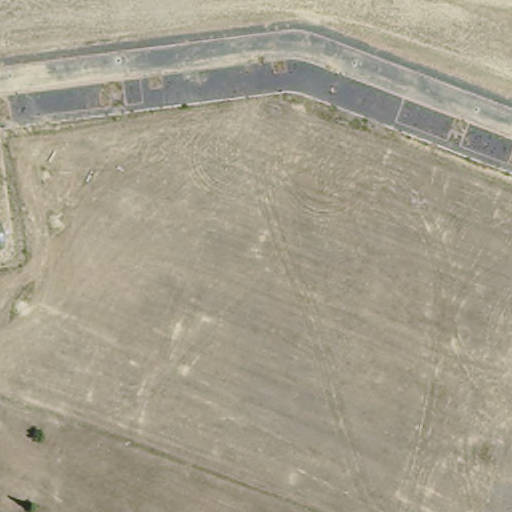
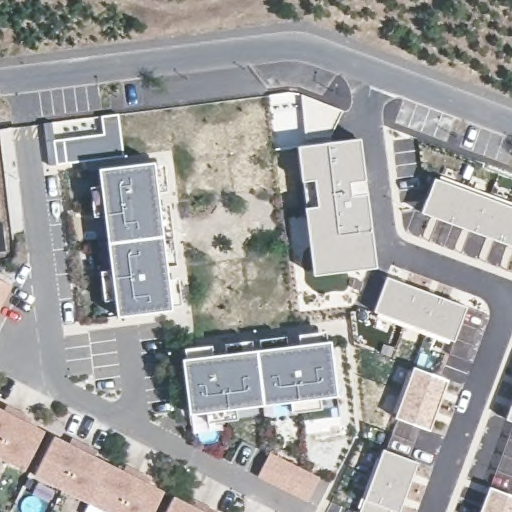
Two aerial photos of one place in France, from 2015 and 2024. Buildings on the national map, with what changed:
new [(343,110),(331,135),(305,136),(301,94),(343,110)]
new [(48,166),(43,124),(54,122),(56,140),(103,134),(101,116),(120,114),(125,156),(48,166)]
new [(305,143),(333,139),(362,136),(367,172),(378,267),(313,275),(296,144),(305,143)]
new [(154,162),(172,309),(118,316),(99,168),(154,162)]
new [(499,197),(512,204),(512,247),(420,212),(435,175),(499,197)]
new [(388,274),(469,305),(454,343),(409,328),(373,311),(388,274)]
new [(11,289),(0,310),(0,284),(11,289)]
new [(331,340),(338,395),(190,413),(183,358),(331,340)]
new [(413,365),(448,378),(430,431),(418,428),(396,420),(396,419),(394,418),(413,365)]
new [(512,422),(505,419),(512,400),(512,423),(512,422)]
new [(4,410),(7,405),(20,412),(0,452),(0,408),(4,410)]
new [(20,412),(33,418),(30,423),(44,430),(25,470),(0,458),(0,452),(20,412)]
new [(56,436),(63,440),(70,443),(73,438),(85,444),(63,489),(36,475),(56,436)]
new [(85,444),(98,451),(96,456),(110,463),(90,503),(63,489),(85,444)]
new [(398,512),(395,512),(390,509),(389,512),(358,512),(364,498),(383,448),(418,461),(398,512)]
new [(270,452),(320,477),(308,500),(258,476),(270,452)]
new [(124,470),(126,465),(139,472),(119,512),(107,512),(90,503),(110,463),(124,470)]
new [(152,478),(150,483),(164,491),(153,512),(119,512),(139,472),(152,478)]
new [(512,493),(512,512),(479,512),(490,484),(512,493)]
new [(189,503),(192,498),(205,504),(201,512),(167,512),(175,496),(189,503)]
new [(218,511),(217,512),(201,512),(205,504),(218,511)]

